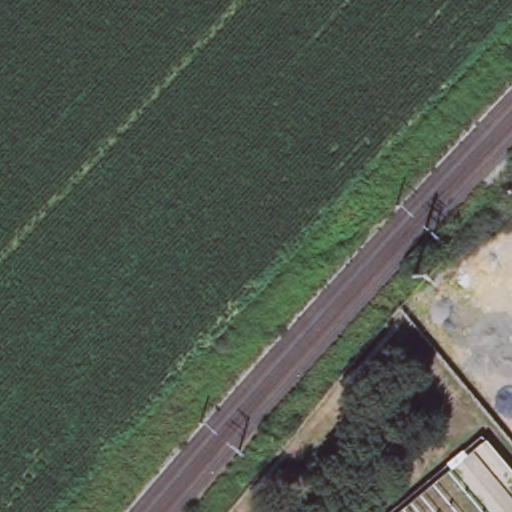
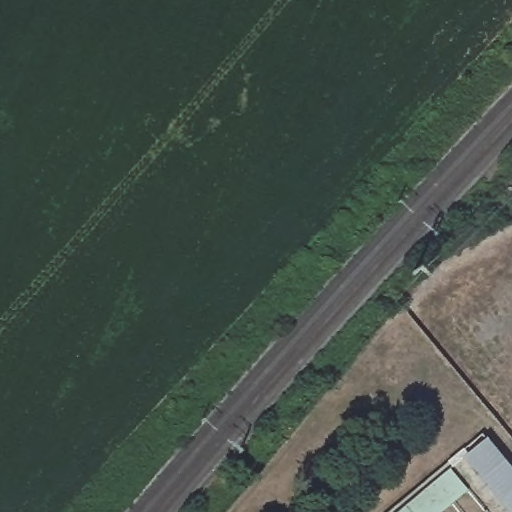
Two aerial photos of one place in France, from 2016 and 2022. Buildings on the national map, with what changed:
unchanged [(512,465),(512,512),(384,512),(418,483),(483,431),(512,465)]

